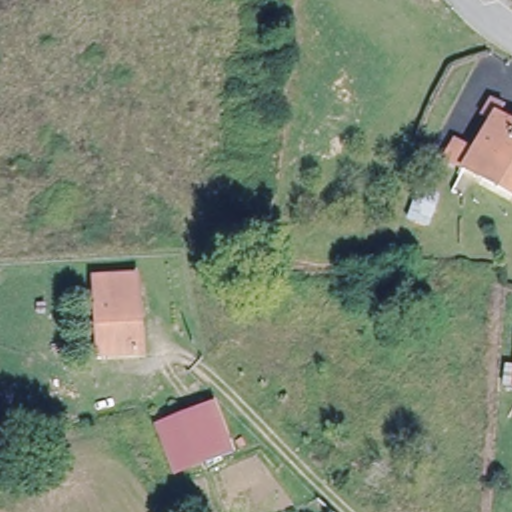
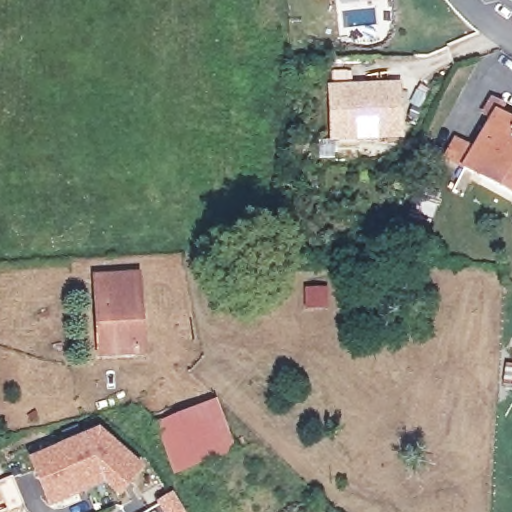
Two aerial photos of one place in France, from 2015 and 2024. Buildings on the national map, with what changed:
new [(402,82),(404,139),(331,142),(330,86),(402,82)]
unchanged [(452,156),(462,141),(480,151),(498,119),(487,112),(496,97),(508,104),(502,116),(512,122),(512,189),(452,156)]
unchanged [(95,279),(135,276),(142,352),(100,356),(95,279)]
unchanged [(215,403),(231,452),(185,467),(168,419),(215,403)]
new [(146,470),(120,502),(104,486),(48,507),(29,458),(98,430),(146,470)]

